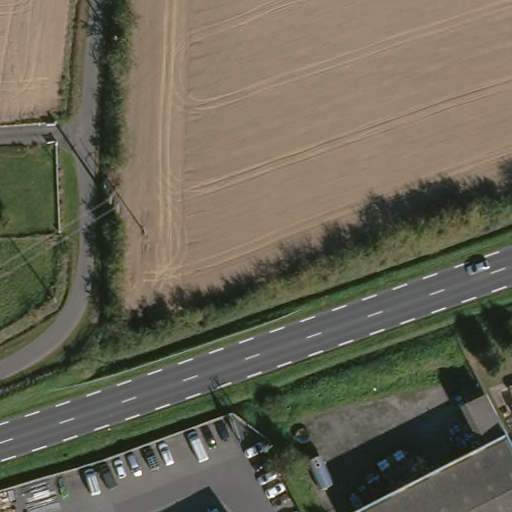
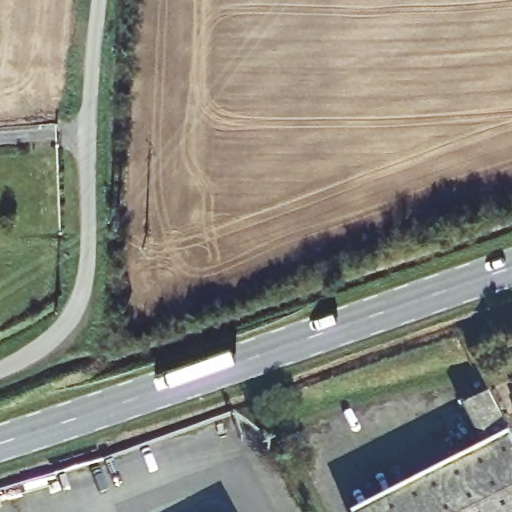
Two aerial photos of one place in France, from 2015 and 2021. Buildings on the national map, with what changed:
unchanged [(484,450),(462,407),(466,405),(488,394),(492,400),(509,437),(484,450)]
unchanged [(512,442),(512,512),(362,512),(484,450),(509,437),(512,442)]

